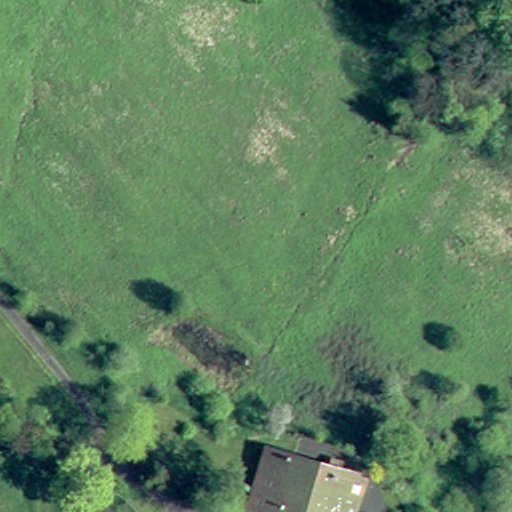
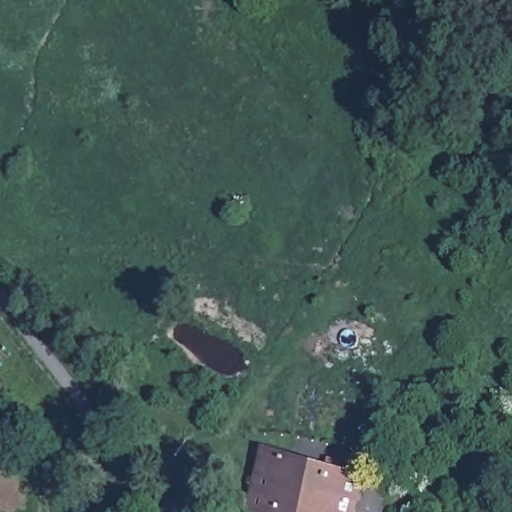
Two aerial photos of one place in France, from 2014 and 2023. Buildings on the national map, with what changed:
unchanged [(336,457),(330,470),(348,477),(335,512),(271,512),(242,501),(265,445),(315,464),(321,451),(336,457)]

